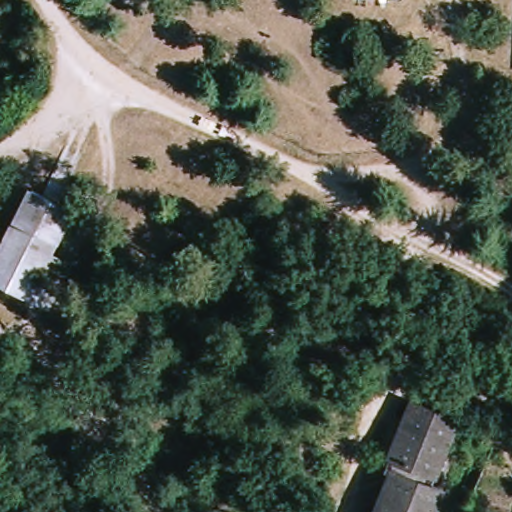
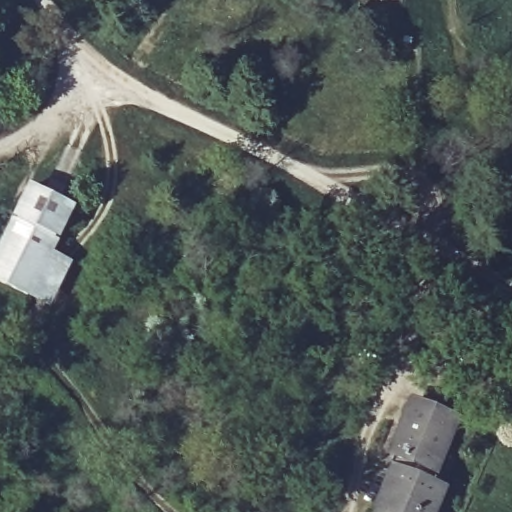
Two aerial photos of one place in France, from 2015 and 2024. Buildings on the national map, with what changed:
unchanged [(46,178),(62,183),(55,199),(66,205),(22,295),(0,284),(0,239),(24,187),(36,192),(46,178)]
unchanged [(386,459),(406,406),(450,422),(426,487),(439,491),(431,512),(372,512),(391,461),(386,459)]

